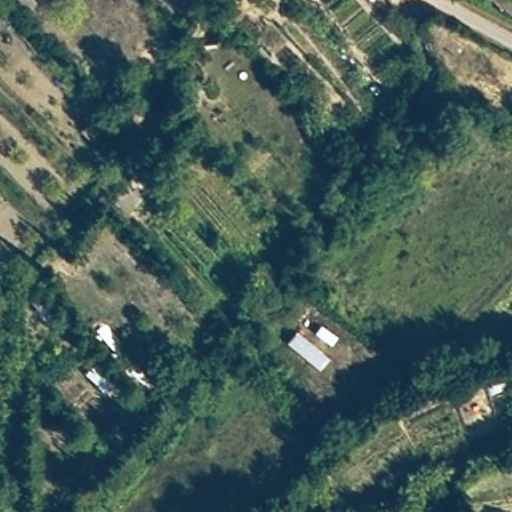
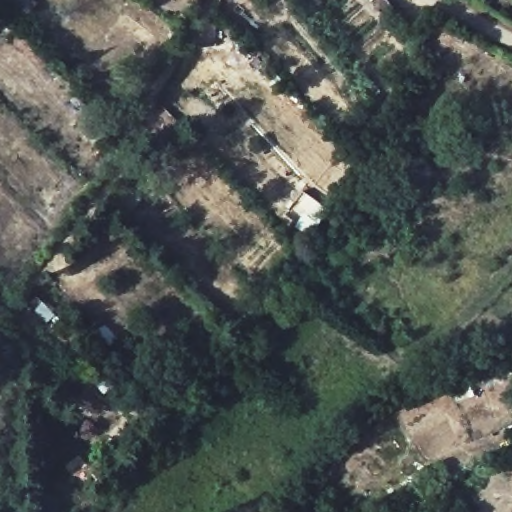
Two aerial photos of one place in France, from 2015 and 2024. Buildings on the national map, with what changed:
unchanged [(40,6),(26,20),(3,0),(34,0),(40,6)]
unchanged [(155,379),(140,394),(122,373),(137,356),(155,379)]

